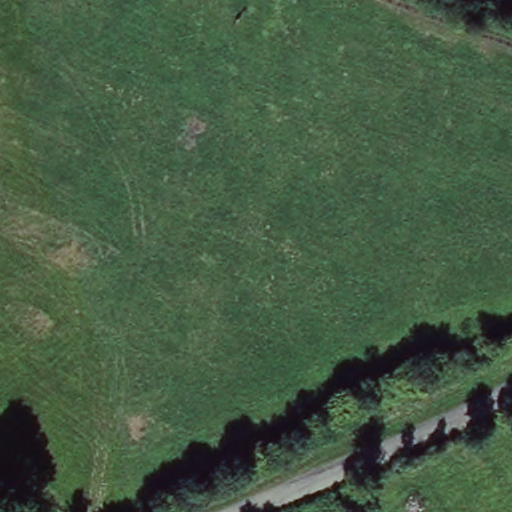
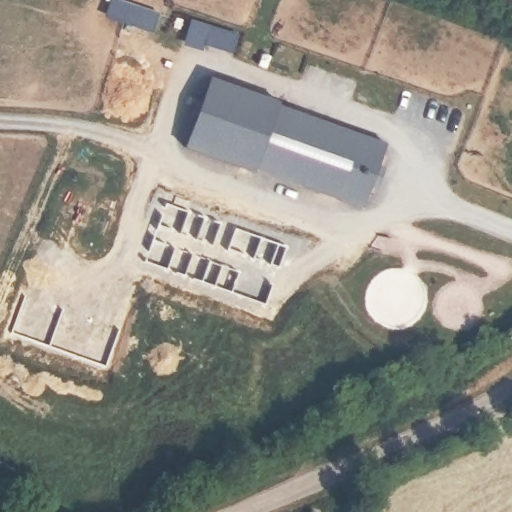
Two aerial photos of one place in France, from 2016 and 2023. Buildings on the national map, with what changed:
new [(233,51),(206,43),(204,47),(185,40),(191,21),(211,28),(238,37),(233,51)]
new [(212,76),(386,138),(359,209),(183,148),(212,76)]

